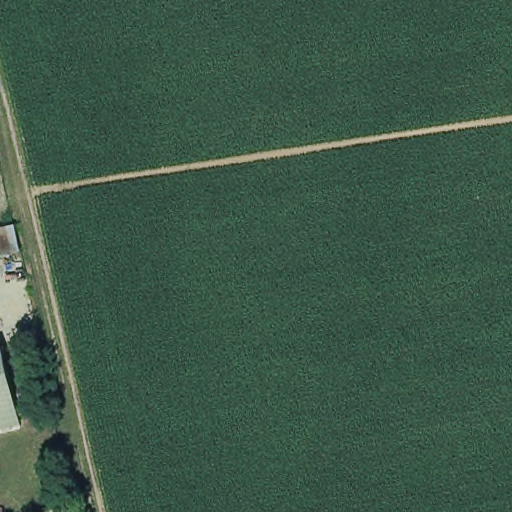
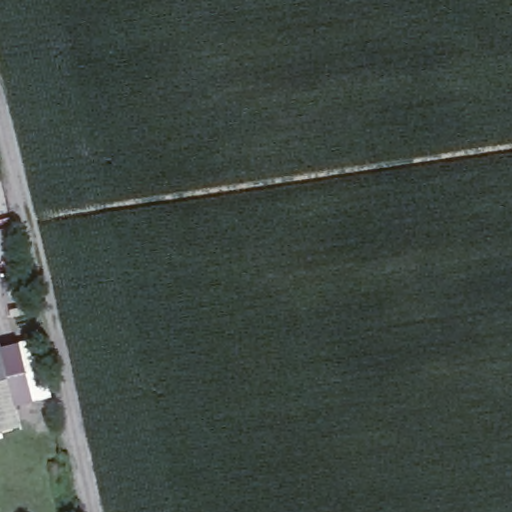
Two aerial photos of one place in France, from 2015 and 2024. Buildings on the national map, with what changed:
unchanged [(0,429),(0,357),(17,425),(0,429)]

